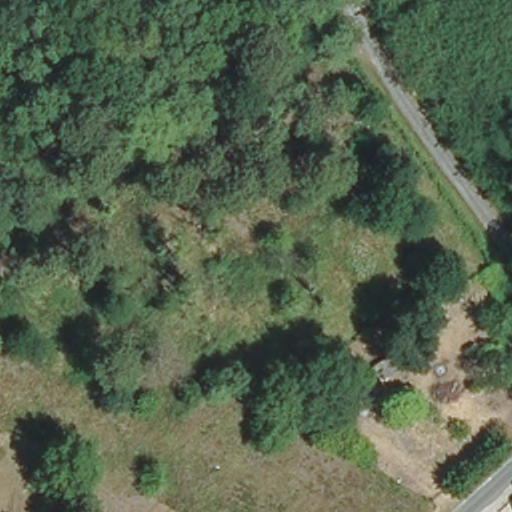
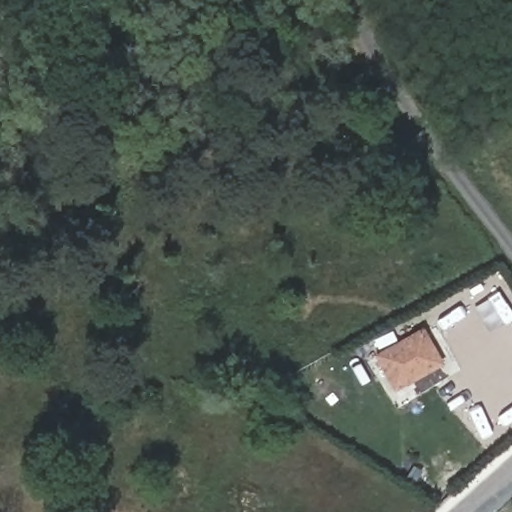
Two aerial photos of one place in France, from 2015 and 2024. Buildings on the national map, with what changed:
demolished [(363,334),(399,320),(411,367),(378,378),(363,334)]
new [(396,392),(375,354),(423,326),(445,364),(396,392)]

